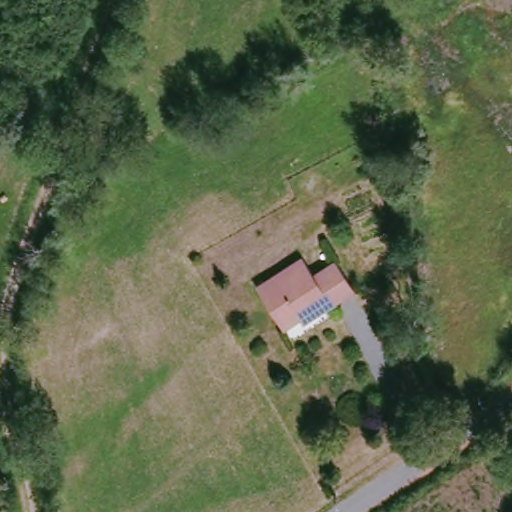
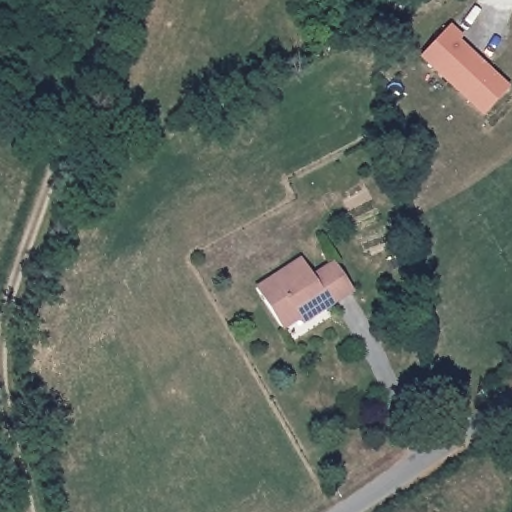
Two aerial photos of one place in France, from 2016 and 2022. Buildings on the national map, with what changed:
new [(420,57),(447,29),(510,87),(482,117),(420,57)]
unchanged [(302,259),(314,277),(335,263),(353,290),(330,305),(327,300),(282,328),(257,288),(302,259)]

